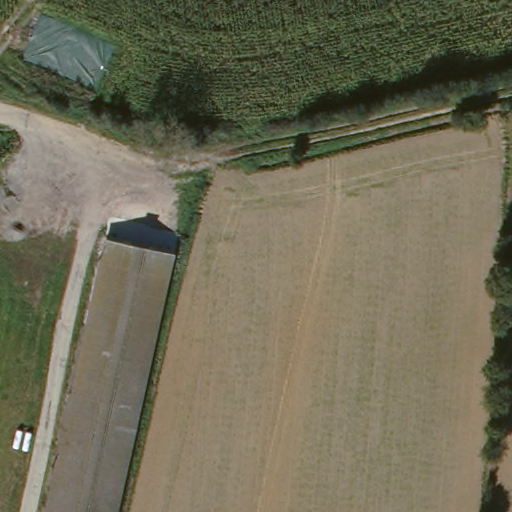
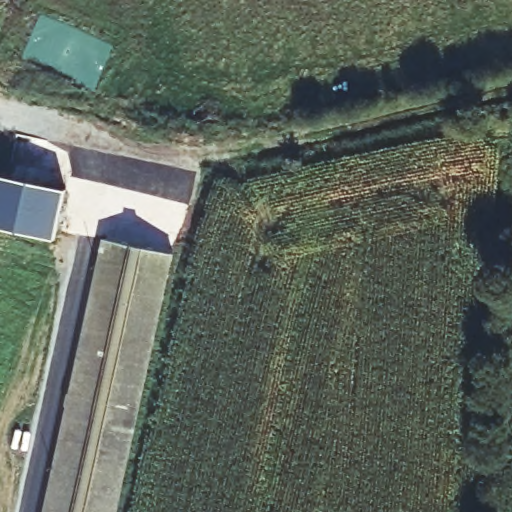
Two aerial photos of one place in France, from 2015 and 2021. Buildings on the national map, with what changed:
new [(0,176),(65,190),(55,240),(0,227),(0,176)]
unchanged [(48,512),(105,239),(170,252),(117,512),(48,512)]

